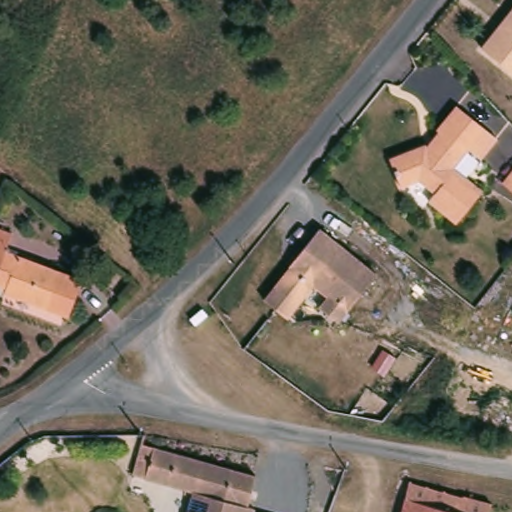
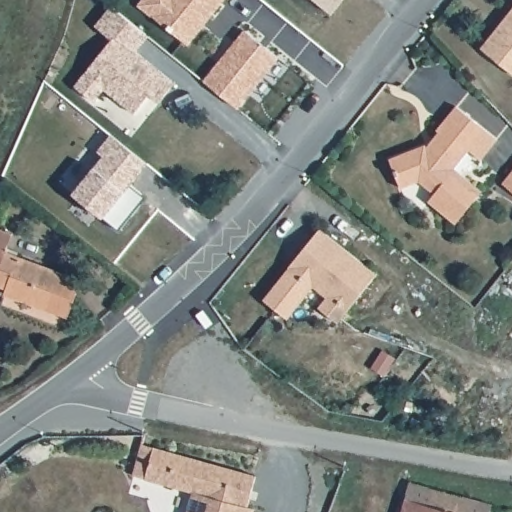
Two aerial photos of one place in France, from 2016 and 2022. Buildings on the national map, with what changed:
new [(140,5),(144,0),(220,0),(188,42),(140,5)]
new [(330,13),(315,0),(342,0),(330,13)]
new [(136,51),(175,82),(159,101),(150,91),(134,112),(105,89),(94,102),(75,84),(111,38),(94,24),(110,4),(149,37),(136,51)]
unchanged [(483,48),(498,29),(502,32),(512,20),(512,71),(483,48)]
new [(259,101),(249,93),(235,106),(205,78),(245,33),(287,66),(259,101)]
unchanged [(486,187),(460,219),(433,197),(439,190),(423,177),(405,185),(393,156),(429,141),(435,146),(447,132),(440,127),(460,102),(490,125),(501,135),(485,156),(473,147),(458,165),(486,187)]
new [(111,134),(146,163),(129,183),(145,196),(118,230),(104,218),(68,189),(90,163),(94,167),(104,156),(97,150),(111,134)]
unchanged [(507,184),(512,177),(512,188),(507,184)]
unchanged [(323,307),(331,297),(317,285),(291,318),(268,300),(293,267),(293,266),(322,228),(380,277),(360,300),(342,322),(323,307)]
unchanged [(11,254),(85,282),(72,315),(16,295),(19,289),(5,283),(4,285),(0,283),(0,232),(16,239),(11,254)]
unchanged [(264,511),(192,493),(134,478),(141,444),(249,470),(252,461),(277,470),(264,511)]
unchanged [(450,495),(484,501),(481,512),(388,512),(391,498),(395,483),(450,495)]
unchanged [(269,512),(187,512),(192,493),(264,511),(269,512)]

